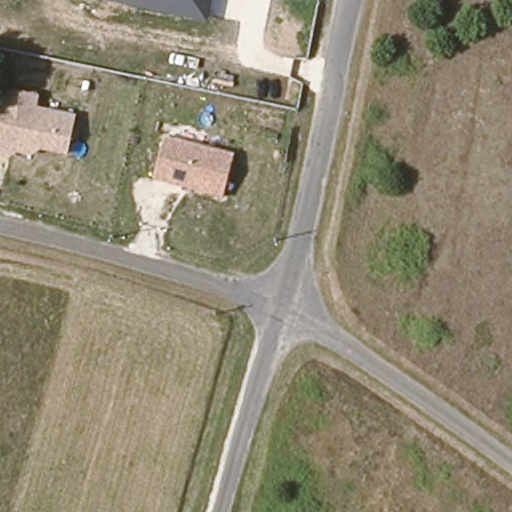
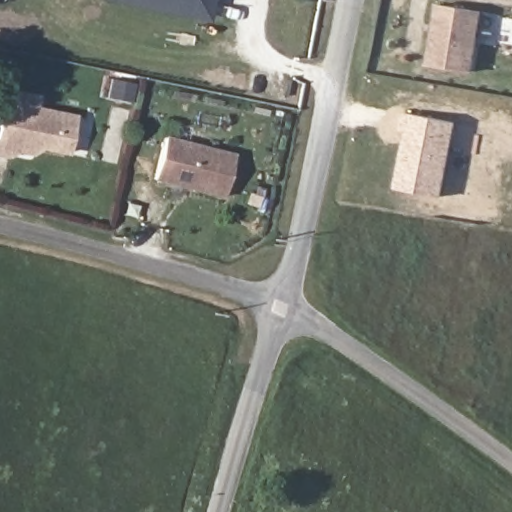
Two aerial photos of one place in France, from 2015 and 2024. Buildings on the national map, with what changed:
unchanged [(207,21),(105,0),(211,0),(207,21)]
new [(441,6),(485,15),(473,78),(428,69),(441,6)]
new [(113,79),(137,83),(134,102),(109,99),(113,79)]
unchanged [(39,150),(32,156),(15,153),(10,158),(0,156),(0,118),(4,92),(39,96),(36,107),(75,115),(68,156),(39,150)]
new [(401,130),(404,112),(456,123),(443,198),(396,188),(408,131),(401,130)]
unchanged [(223,196),(154,179),(164,139),(233,156),(223,196)]

